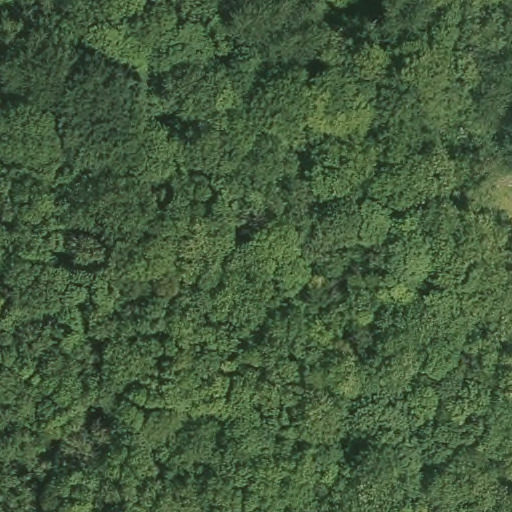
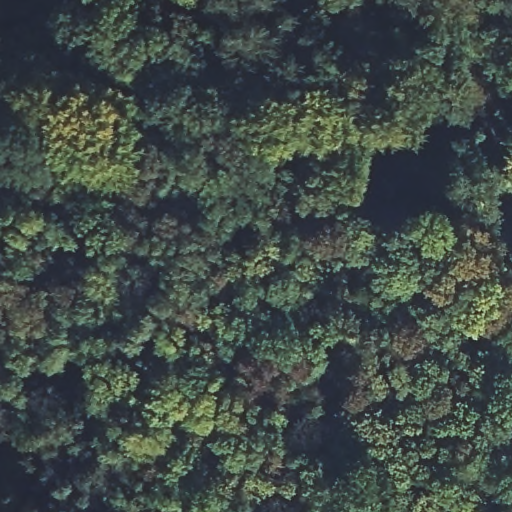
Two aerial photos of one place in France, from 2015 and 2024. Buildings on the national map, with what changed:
[]

